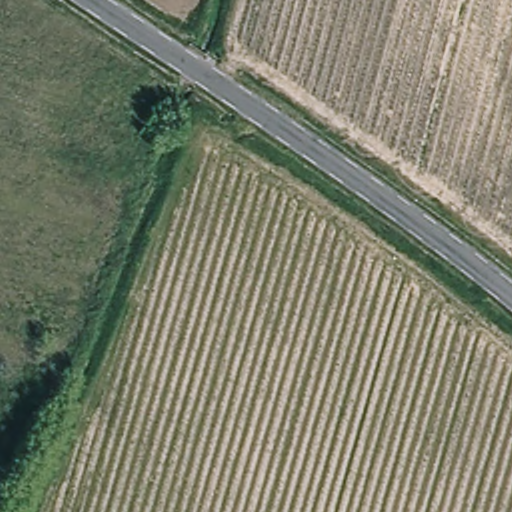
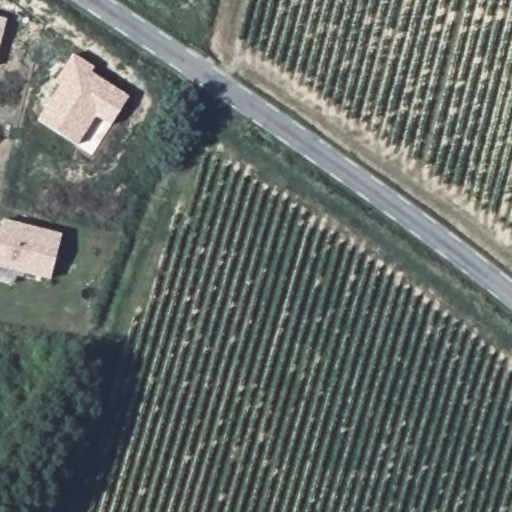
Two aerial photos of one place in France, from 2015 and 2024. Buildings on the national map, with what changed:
new [(7,18),(0,51),(0,17),(7,18)]
new [(56,81),(73,54),(94,67),(91,72),(129,96),(111,126),(96,116),(79,145),(39,119),(61,85),(56,81)]
new [(2,219),(60,235),(49,277),(0,265),(0,225),(2,219)]

